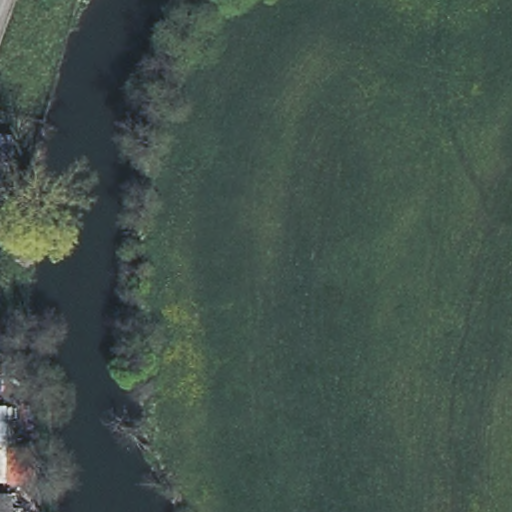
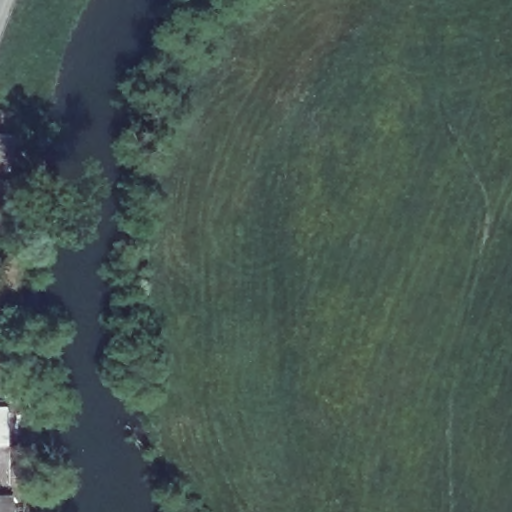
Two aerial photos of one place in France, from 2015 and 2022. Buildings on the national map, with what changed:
unchanged [(15,136),(10,170),(0,168),(0,134),(15,136)]
unchanged [(6,201),(0,200),(0,179),(9,181),(6,201)]

